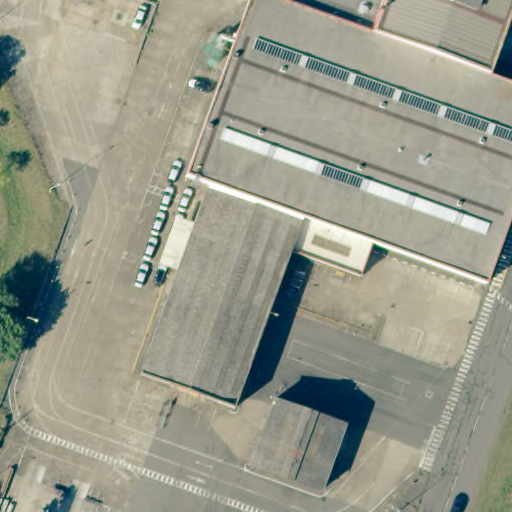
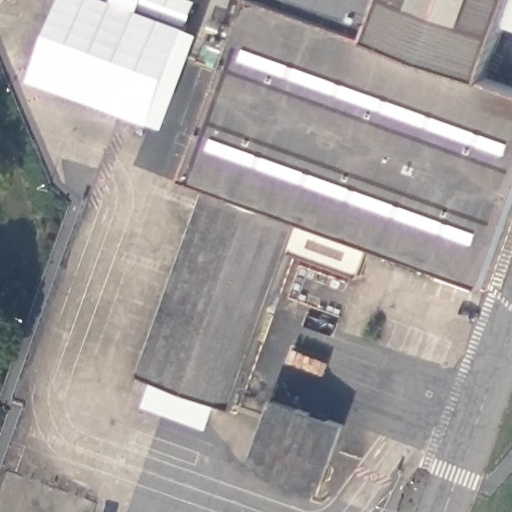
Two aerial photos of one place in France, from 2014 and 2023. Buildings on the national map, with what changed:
demolished [(0,0),(9,0),(33,57),(6,69),(0,56),(0,0)]
new [(191,26),(205,31),(168,126),(33,79),(61,0),(199,0),(201,0),(191,26)]
demolished [(128,44),(88,29),(98,0),(132,0),(142,4),(128,44)]
unchanged [(512,83),(512,189),(480,278),(179,168),(239,0),(507,0),(482,71),(512,83)]
unchanged [(227,402),(132,368),(201,179),(296,213),(227,402)]
unchanged [(243,467),(267,402),(293,412),(278,453),(322,469),(313,493),(243,467)]
unchanged [(336,428),(322,466),(281,451),(295,413),(336,428)]
demolished [(86,512),(0,512),(0,469),(1,466),(91,498),(86,512)]
demolished [(248,512),(229,512),(232,506),(248,512)]

